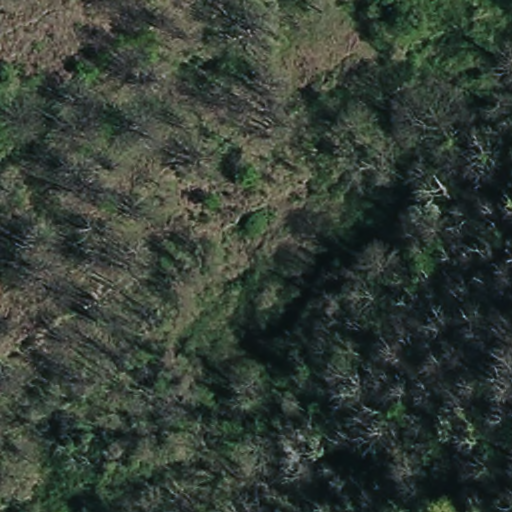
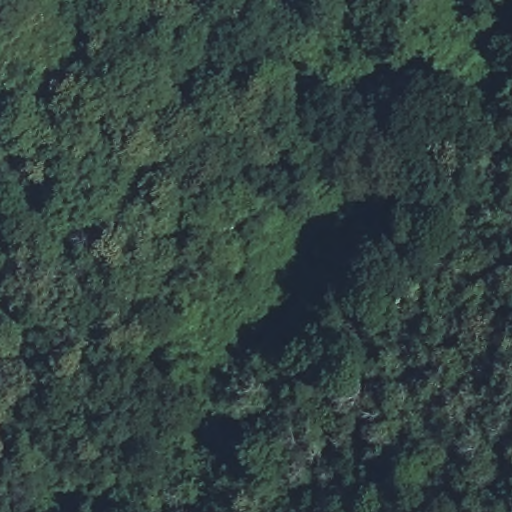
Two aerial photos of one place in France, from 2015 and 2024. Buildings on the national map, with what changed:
[]

